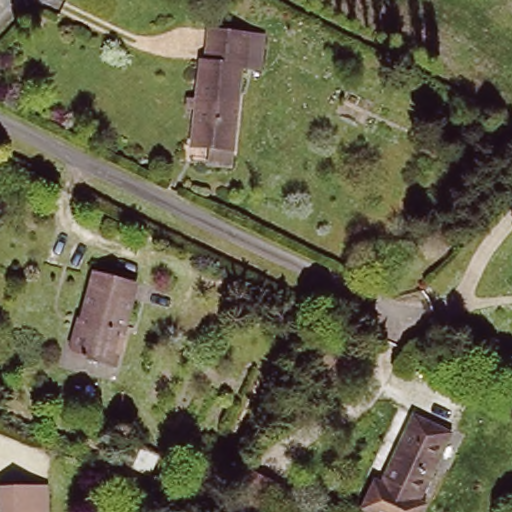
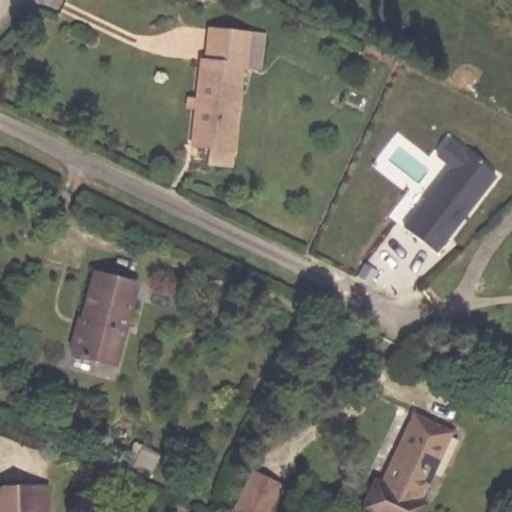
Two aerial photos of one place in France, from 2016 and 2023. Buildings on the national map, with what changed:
unchanged [(214,165),(215,149),(201,149),(206,61),(212,61),(213,27),(254,29),(267,29),(265,64),(252,65),(246,64),(241,150),(240,167),(214,165)]
new [(403,227),(450,167),(437,158),(450,141),(496,175),(437,253),(403,227)]
unchanged [(137,279),(118,361),(77,351),(96,269),(137,279)]
unchanged [(371,512),(360,506),(374,478),(384,483),(415,417),(450,434),(418,500),(428,505),(425,512),(371,512)]
unchanged [(270,512),(247,512),(237,508),(255,468),(284,480),(270,512)]
unchanged [(50,494),(50,512),(0,512),(0,494),(50,494)]

